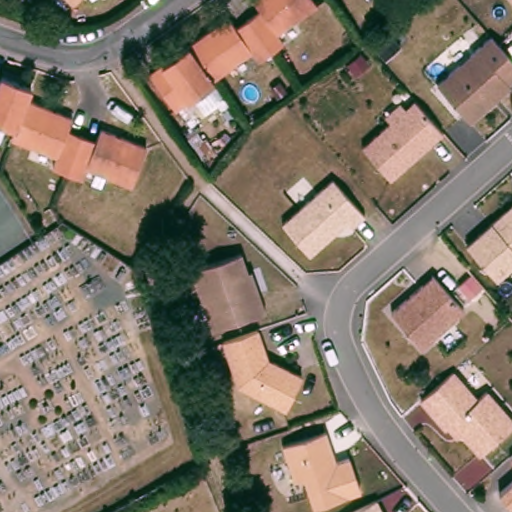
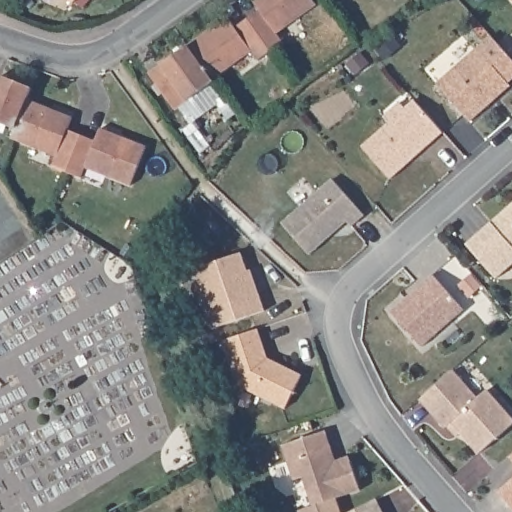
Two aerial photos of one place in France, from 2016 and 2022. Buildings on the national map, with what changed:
unchanged [(71,0),(75,0),(72,2),(71,0)]
unchanged [(248,17),(259,9),(252,0),(313,0),(315,3),(275,32),(282,41),(270,49),(257,59),(250,50),(210,78),(212,82),(174,109),(147,72),(187,45),(227,17),(234,27),(248,17)]
unchanged [(507,103),(483,124),(450,86),(504,38),(512,48),(512,99),(507,103)]
unchanged [(29,84),(24,98),(55,110),(46,134),(39,150),(7,137),(12,126),(0,121),(0,74),(1,72),(29,84)]
unchanged [(403,181),(375,149),(403,124),(398,118),(413,105),(418,111),(427,103),(441,118),(456,135),(432,155),(424,163),(403,181)]
unchanged [(69,116),(64,127),(77,132),(92,138),(96,127),(141,145),(126,183),(81,166),(77,178),(61,171),(48,166),(52,155),(39,150),(46,134),(55,110),(69,116)]
unchanged [(346,181),(377,217),(364,229),(357,221),(342,234),(344,237),(326,254),(298,223),(346,181)]
unchanged [(510,281),(480,247),(512,219),(512,279),(510,281)]
unchanged [(261,276),(264,274),(271,296),(277,314),(224,332),(205,273),(254,256),(261,276)]
unchanged [(446,277),(477,312),(435,350),(403,315),(446,277)]
unchanged [(297,412),(250,388),(235,344),(247,340),(270,332),(270,333),(280,362),(286,365),(314,379),(297,412)]
unchanged [(480,396),(486,390),(512,417),(512,423),(481,454),(461,436),(456,442),(418,402),(452,370),(480,396)]
unchanged [(343,450),(348,463),(361,459),(372,493),(326,509),(316,480),(307,483),(295,449),(337,434),(343,450)]
unchanged [(511,455),(512,454),(512,457),(511,455)]
unchanged [(499,491),(512,481),(512,505),(499,491)]
unchanged [(385,504),(388,502),(393,512),(370,512),(385,504)]

